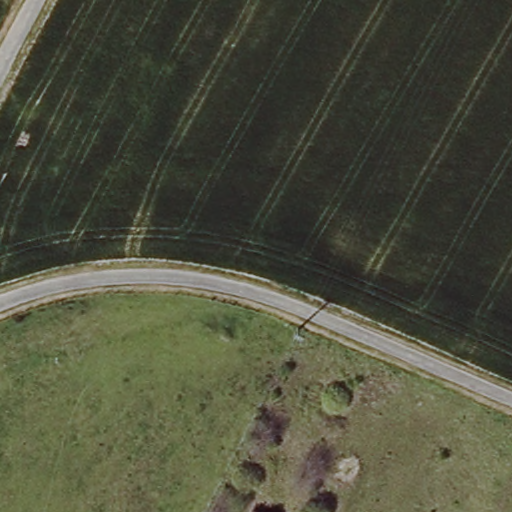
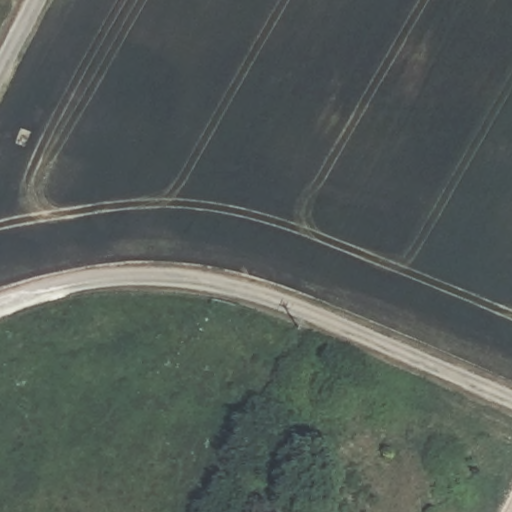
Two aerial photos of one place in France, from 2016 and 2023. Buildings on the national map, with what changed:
[]

